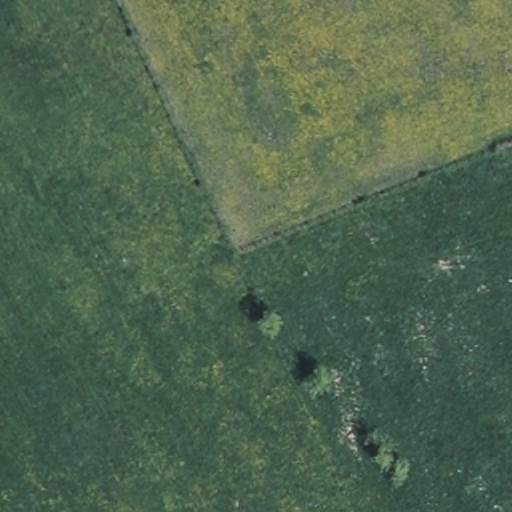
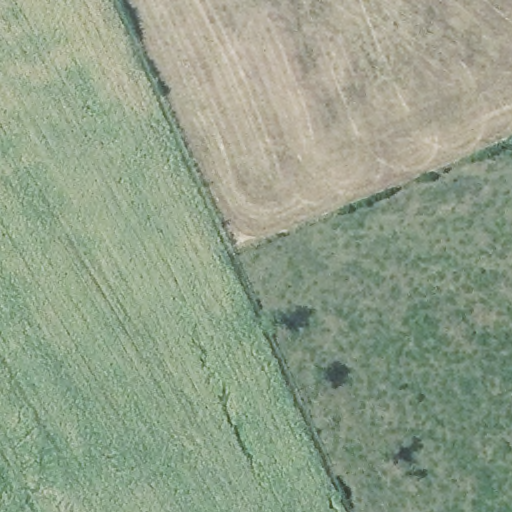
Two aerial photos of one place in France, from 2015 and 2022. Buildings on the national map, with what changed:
[]

